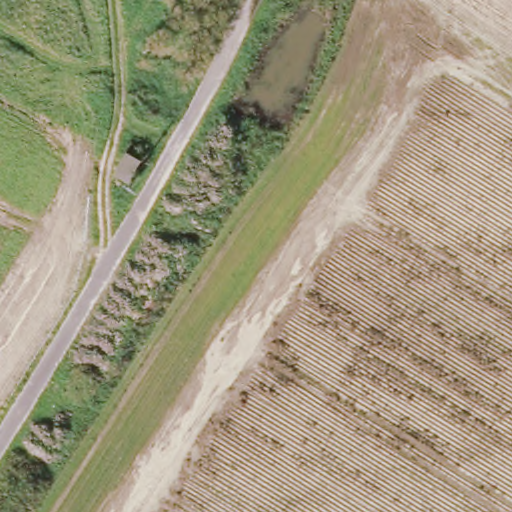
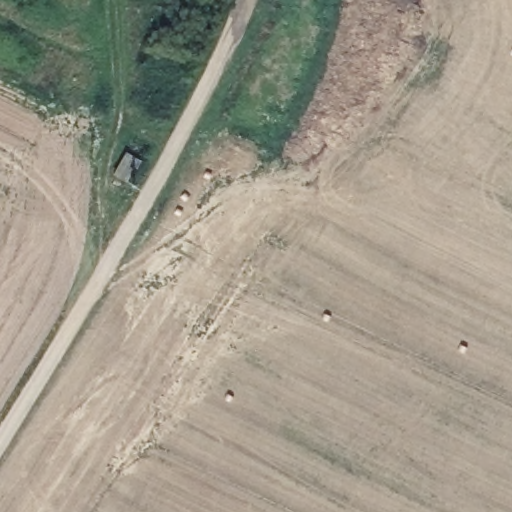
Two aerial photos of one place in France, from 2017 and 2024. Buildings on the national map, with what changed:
unchanged [(125,148),(131,140),(146,147),(141,157),(145,160),(130,185),(112,173),(125,148)]

